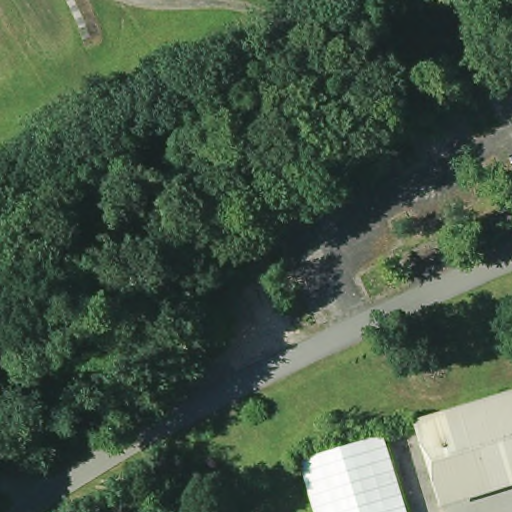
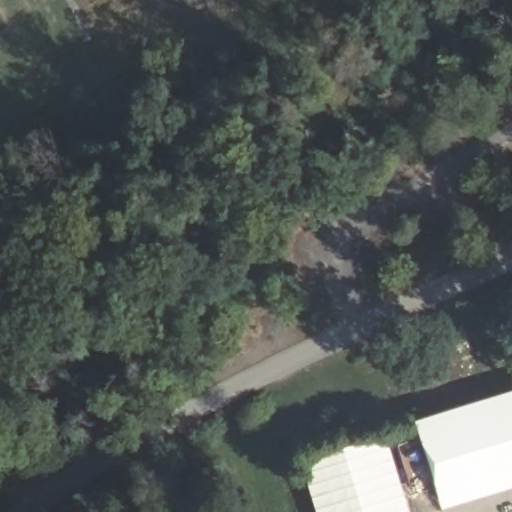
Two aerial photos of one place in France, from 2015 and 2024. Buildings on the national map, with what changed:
unchanged [(421,429),(512,401),(512,481),(444,502),(421,429)]
unchanged [(301,466),(385,439),(408,512),(316,512),(301,466)]

